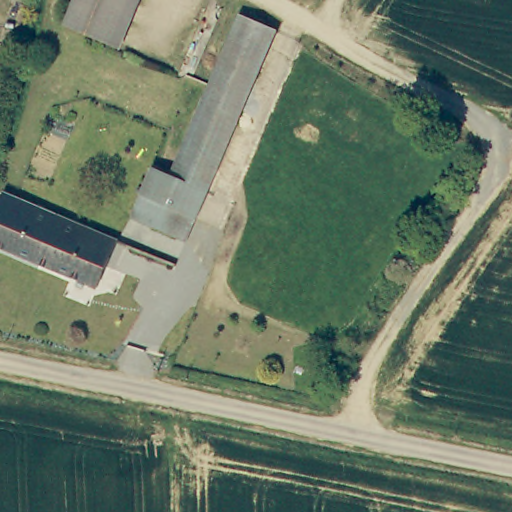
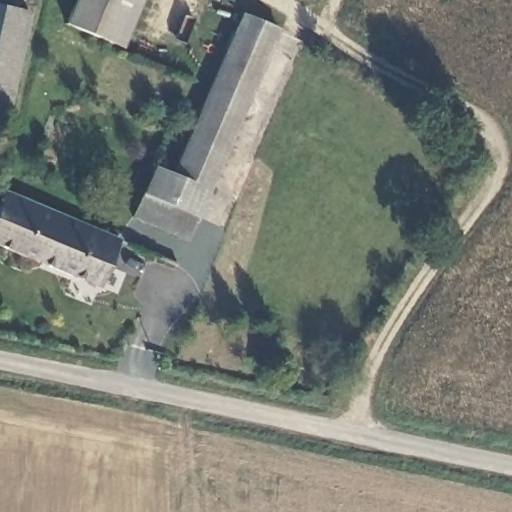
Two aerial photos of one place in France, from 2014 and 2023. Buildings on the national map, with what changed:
unchanged [(71,32),(84,0),(142,0),(120,51),(71,32)]
unchanged [(194,71),(227,4),(245,11),(214,80),(194,71)]
new [(0,8),(31,14),(8,113),(0,112),(0,8)]
unchanged [(286,29),(198,217),(140,194),(151,168),(171,174),(214,80),(245,11),(286,29)]
unchanged [(11,194),(125,242),(104,292),(0,248),(0,211),(4,212),(11,194)]
unchanged [(198,217),(187,240),(130,218),(140,194),(198,217)]

